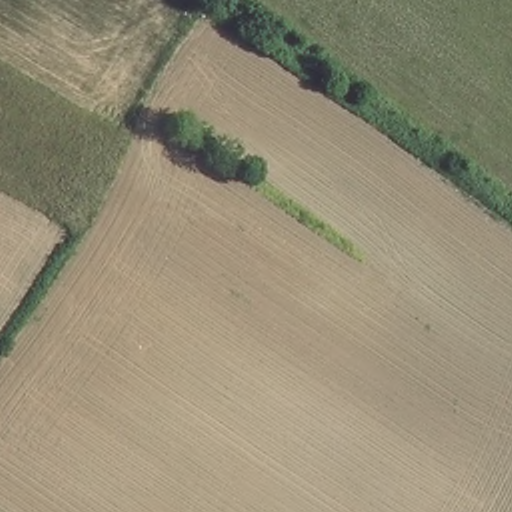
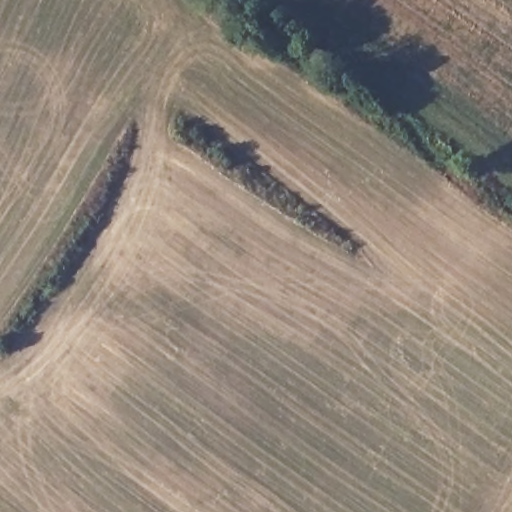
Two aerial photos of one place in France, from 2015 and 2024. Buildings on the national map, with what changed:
[]

